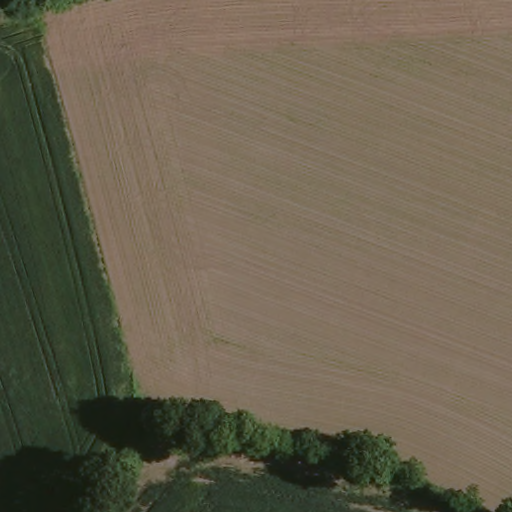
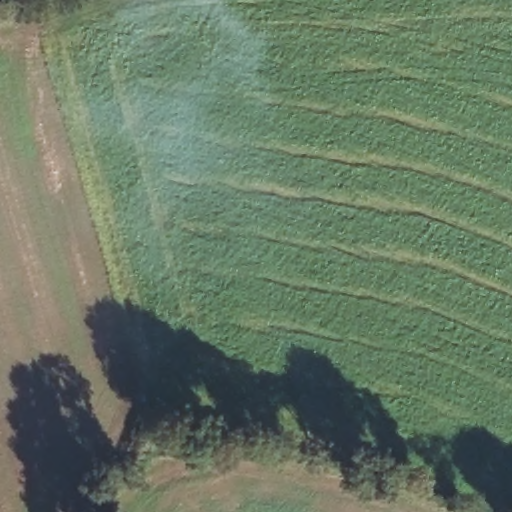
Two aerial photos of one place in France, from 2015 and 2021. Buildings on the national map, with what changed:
[]

